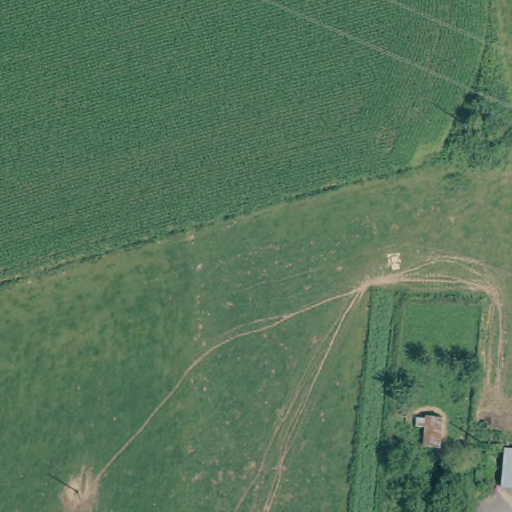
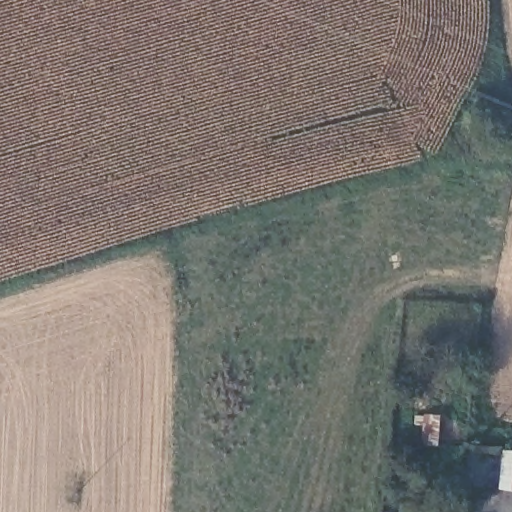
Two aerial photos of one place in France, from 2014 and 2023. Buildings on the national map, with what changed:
unchanged [(502,446),(512,446),(512,485),(497,484),(502,446)]
unchanged [(435,512),(428,512),(428,511),(435,512)]

